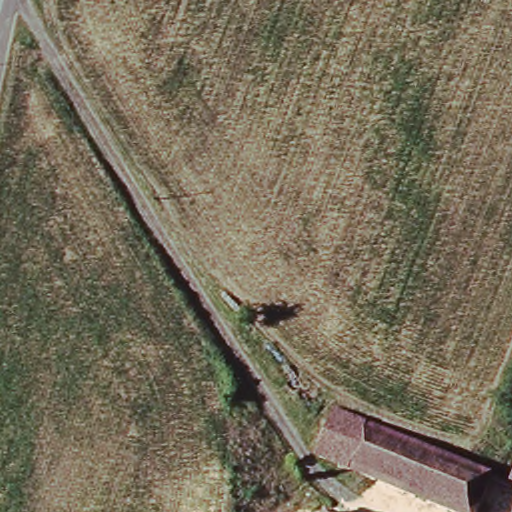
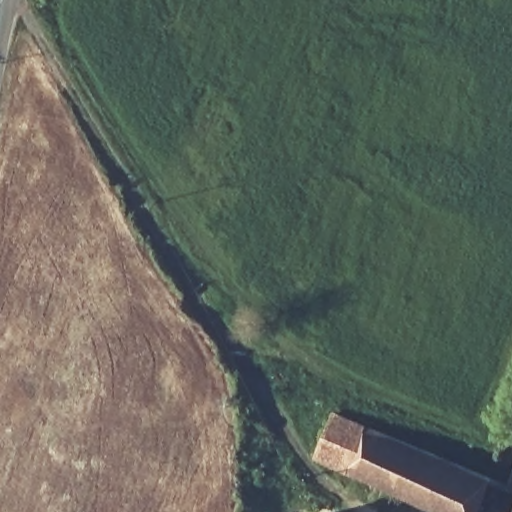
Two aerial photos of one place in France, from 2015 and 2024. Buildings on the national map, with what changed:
unchanged [(321,454),(342,409),(496,480),(482,512),(447,512),(321,454)]

